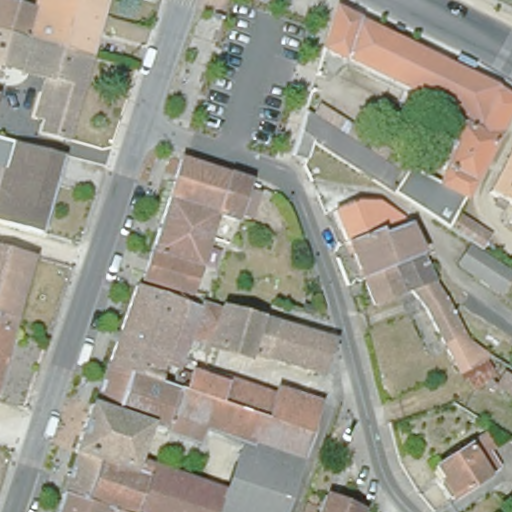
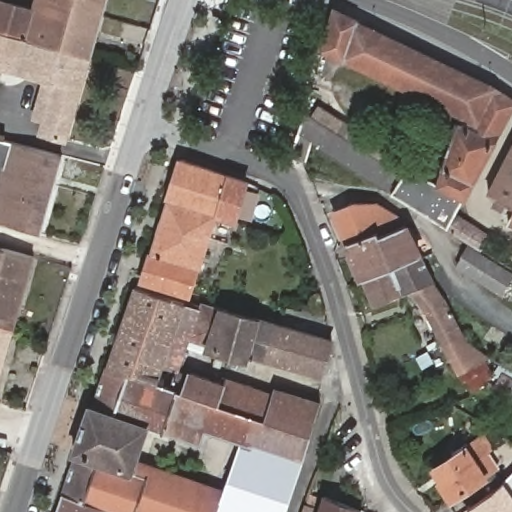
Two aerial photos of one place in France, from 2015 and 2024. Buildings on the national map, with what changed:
unchanged [(89,55),(0,30),(0,0),(31,8),(34,0),(105,0),(89,55)]
unchanged [(471,248),(454,238),(447,233),(429,222),(404,206),(401,204),(390,197),(408,171),(435,190),(441,176),(439,175),(455,128),(477,135),(479,128),(323,55),(322,55),(335,15),(339,17),(499,94),(512,104),(512,111),(468,194),(464,202),(455,218),(487,238),(478,253),(471,248)]
unchanged [(65,139),(38,131),(40,119),(32,116),(44,78),(0,65),(0,30),(89,55),(65,139)]
unchanged [(335,163),(314,149),(311,148),(306,164),(289,160),(300,127),(303,117),(327,132),(347,144),(397,175),(384,194),(335,163)]
unchanged [(38,231),(4,222),(11,197),(0,193),(0,165),(1,165),(9,140),(60,154),(38,231)]
unchanged [(512,144),(512,205),(487,192),(512,144)]
unchanged [(245,181),(232,221),(213,215),(187,294),(140,279),(178,160),(245,181)]
unchanged [(328,211),(347,204),(371,203),(396,219),(397,222),(372,233),(370,227),(341,240),(328,211)]
unchanged [(512,211),(512,224),(507,222),(512,211)]
unchanged [(341,240),(370,227),(372,233),(397,222),(413,254),(356,278),(341,240)]
unchanged [(32,256),(11,331),(0,328),(0,247),(32,256)]
unchanged [(504,275),(494,292),(457,269),(465,258),(468,252),(504,275)]
unchanged [(415,259),(425,254),(433,270),(423,274),(425,278),(425,280),(426,282),(447,317),(463,342),(481,356),(451,371),(420,314),(402,292),(368,305),(356,278),(413,254),(415,259)]
unchanged [(134,285),(138,287),(197,308),(199,301),(301,332),(305,315),(300,313),(304,302),(321,308),(330,341),(319,374),(204,342),(202,348),(184,343),(180,352),(175,367),(161,364),(155,382),(105,365),(134,285)]
unchanged [(11,331),(0,370),(0,328),(11,331)]
unchanged [(72,464),(75,454),(71,453),(87,404),(88,404),(91,404),(105,365),(155,382),(181,390),(187,372),(219,382),(222,375),(263,388),(257,408),(221,397),(224,383),(222,383),(216,402),(265,418),(309,433),(302,455),(270,445),(259,441),(257,446),(250,444),(239,440),(205,430),(199,445),(145,428),(134,460),(149,465),(223,491),(220,498),(216,512),(117,512),(62,493),(72,464)]
unchanged [(497,395),(488,390),(491,386),(497,389),(505,377),(512,381),(512,402),(498,393),(497,395)]
unchanged [(265,418),(276,389),(319,402),(309,433),(265,418)]
unchanged [(436,479),(439,477),(433,466),(436,463),(471,440),(482,434),(491,448),(487,451),(497,467),(451,497),(448,499),(436,479)]
unchanged [(216,512),(220,498),(223,491),(238,443),(249,446),(250,444),(257,446),(259,441),(270,445),(302,455),(285,512),(216,512)]
new [(492,492),(504,480),(512,473),(512,512),(466,512),(465,510),(492,492)]
unchanged [(117,512),(56,512),(62,493),(117,512)]
unchanged [(361,507),(359,512),(318,512),(324,493),(361,507)]
demolished [(510,512),(508,512),(509,510),(510,512)]

